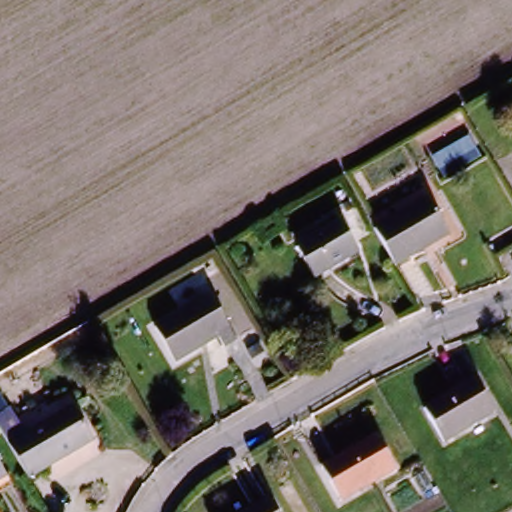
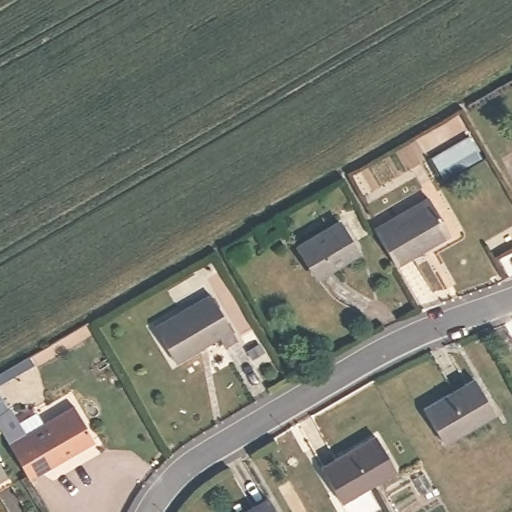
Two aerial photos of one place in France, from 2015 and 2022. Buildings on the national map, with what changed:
unchanged [(443,225),(390,256),(370,221),(423,190),(443,225)]
unchanged [(308,278),(291,249),(334,223),(351,252),(308,278)]
unchanged [(220,339),(214,330),(171,358),(150,324),(176,308),(170,299),(197,280),(203,290),(231,332),(220,339)]
unchanged [(445,437),(426,404),(475,378),(492,410),(445,437)]
unchanged [(27,480),(7,448),(0,435),(0,426),(11,419),(22,439),(71,409),(90,442),(27,480)]
unchanged [(375,439),(393,473),(340,501),(321,468),(375,439)]
unchanged [(0,480),(0,467),(6,477),(0,480)]
unchanged [(265,503),(270,512),(248,512),(265,503)]

